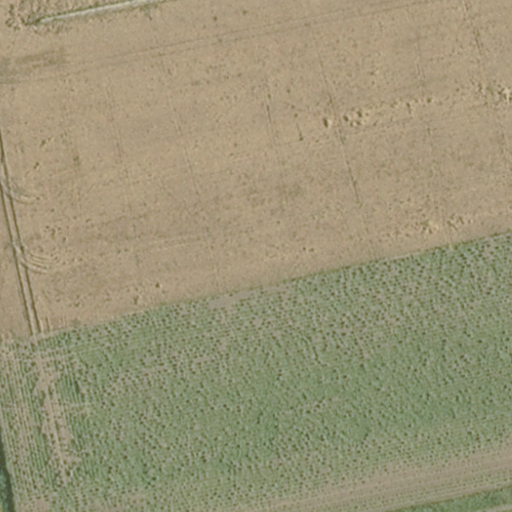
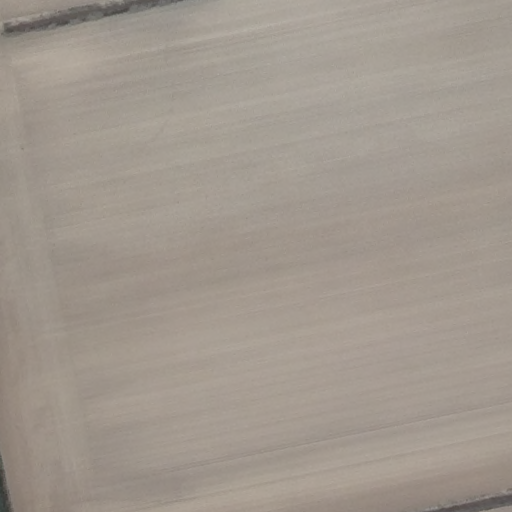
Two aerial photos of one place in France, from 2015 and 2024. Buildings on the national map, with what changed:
[]

